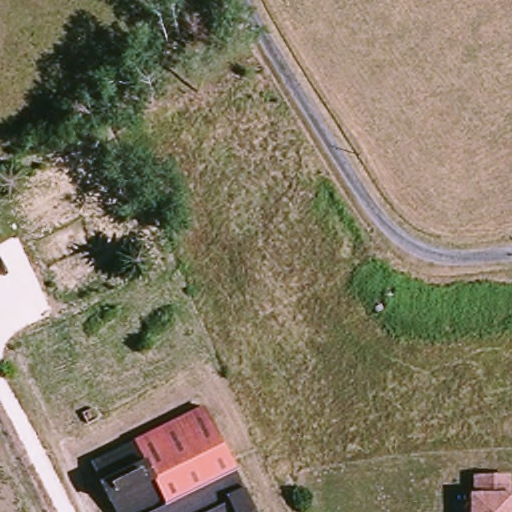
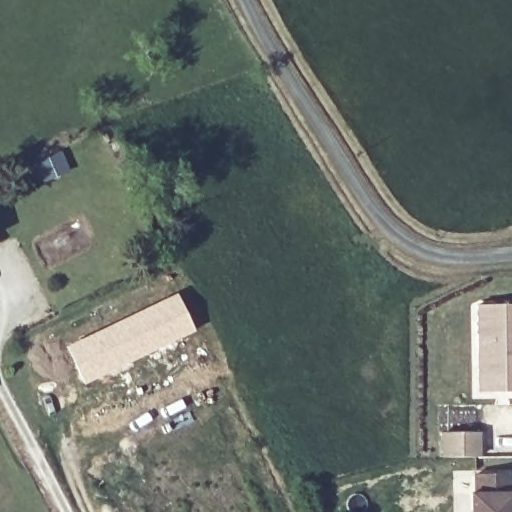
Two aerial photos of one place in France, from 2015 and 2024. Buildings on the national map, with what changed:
new [(177,292),(196,330),(85,384),(66,346),(177,292)]
new [(495,396),(481,396),(481,354),(480,309),(512,309),(512,396),(495,396)]
demolished [(118,512),(92,460),(205,405),(256,512),(118,512)]
new [(445,432),(478,433),(478,458),(445,457),(445,432)]
unchanged [(477,493),(477,474),(510,473),(511,488),(512,488),(512,512),(473,512),(472,493),(477,493)]

